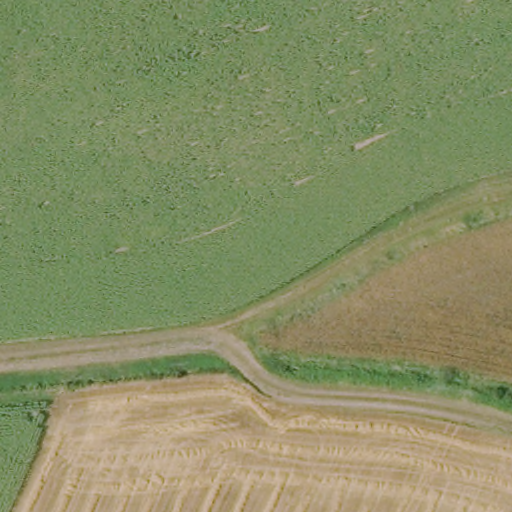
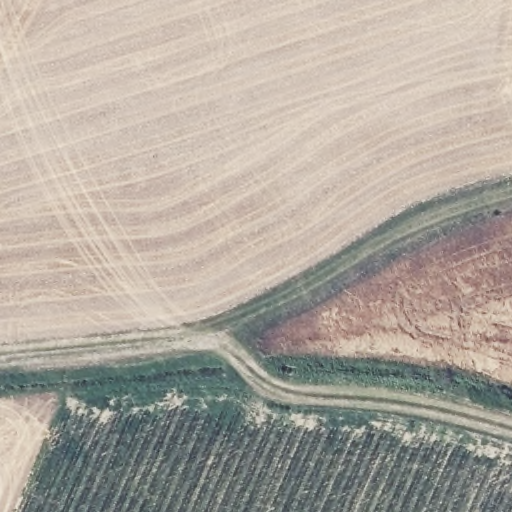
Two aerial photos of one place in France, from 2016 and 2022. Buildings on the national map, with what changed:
[]

